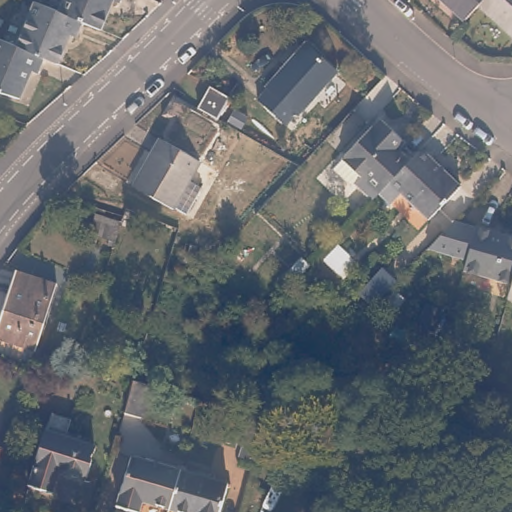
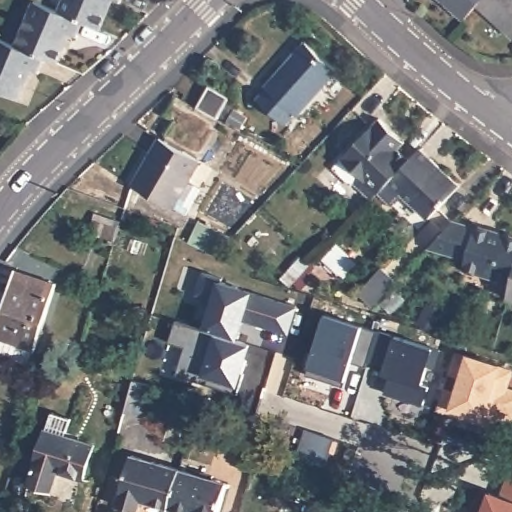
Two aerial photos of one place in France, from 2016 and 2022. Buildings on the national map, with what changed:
unchanged [(84,17),(79,32),(70,30),(60,60),(45,54),(20,43),(35,0),(41,0),(61,9),(84,17)]
unchanged [(103,25),(84,17),(61,9),(65,0),(112,0),(103,25)]
unchanged [(466,16),(450,0),(483,0),(480,3),(466,16)]
unchanged [(483,0),(512,0),(512,36),(480,3),(483,0)]
unchanged [(40,70),(33,67),(21,97),(0,89),(0,35),(20,43),(45,54),(40,70)]
unchanged [(341,72),(302,115),(297,112),(287,124),(262,100),(272,90),(269,86),(310,44),(341,72)]
unchanged [(241,97),(230,121),(208,110),(219,86),(241,97)]
unchanged [(381,187),(373,197),(355,182),(363,176),(343,158),(381,118),(405,140),(399,147),(409,157),(381,187)]
unchanged [(421,144),(463,182),(432,216),(405,192),(396,201),(381,187),(409,157),(421,144)]
unchanged [(201,162),(178,212),(140,195),(164,145),(201,162)]
unchanged [(114,217),(111,236),(86,229),(91,212),(114,217)]
unchanged [(470,266),(473,255),(441,247),(464,222),(482,227),(483,225),(512,233),(512,278),(470,266)]
unchanged [(38,340),(33,357),(0,345),(0,336),(1,331),(0,330),(0,317),(13,274),(16,262),(25,265),(60,275),(43,340),(38,340)]
new [(203,328),(213,301),(196,295),(205,272),(221,280),(257,290),(256,292),(299,304),(289,335),(247,323),(242,338),(253,342),(240,386),(239,394),(175,375),(185,347),(170,342),(177,320),(203,328)]
unchanged [(509,293),(512,283),(512,294),(509,293)]
new [(347,378),(346,387),(307,375),(309,367),(326,312),(365,325),(347,378)]
new [(397,336),(436,348),(422,387),(421,405),(384,392),(386,375),(383,373),(386,366),(370,361),(379,330),(397,336)]
new [(511,386),(512,386),(512,421),(501,417),(498,427),(452,415),(462,377),(450,373),(456,350),(467,353),(504,363),(503,366),(512,368),(512,380),(511,386)]
unchanged [(141,395),(134,423),(119,418),(127,387),(141,395)]
unchanged [(61,467),(54,487),(34,480),(51,425),(88,437),(96,440),(87,475),(78,472),(61,467)]
unchanged [(169,510),(145,502),(141,512),(120,505),(135,456),(181,472),(169,510)]
unchanged [(321,472),(311,496),(299,492),(308,467),(321,472)]
new [(486,512),(494,492),(505,467),(512,470),(512,512),(486,512)]
unchanged [(218,512),(175,512),(169,510),(181,472),(225,486),(218,512)]

